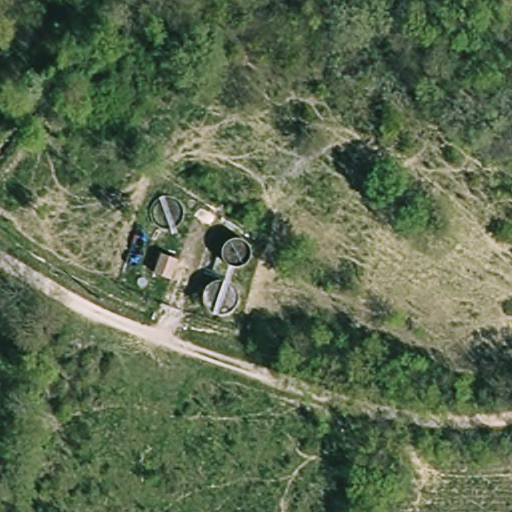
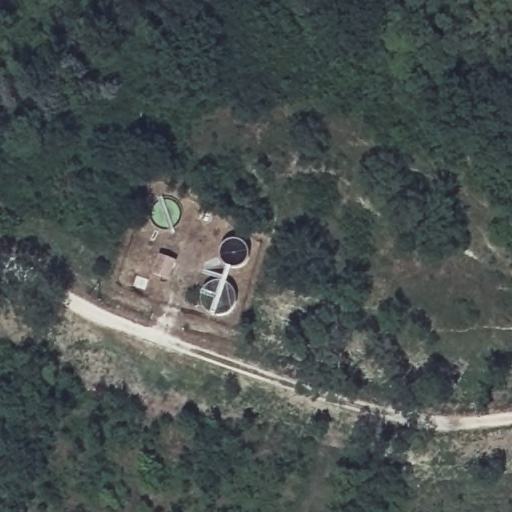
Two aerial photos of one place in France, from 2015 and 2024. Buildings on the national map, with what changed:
unchanged [(155,272),(163,253),(176,261),(167,278),(155,272)]

